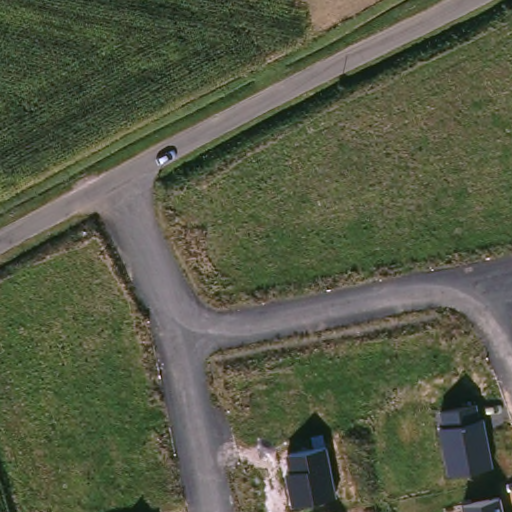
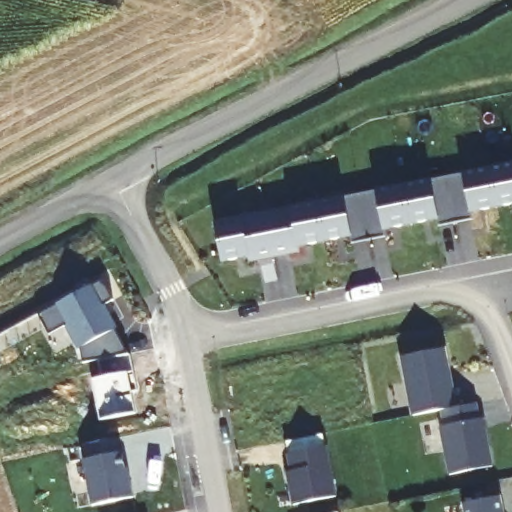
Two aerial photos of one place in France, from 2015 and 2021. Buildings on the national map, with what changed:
new [(512,207),(496,210),(488,171),(512,167),(512,207)]
new [(488,171),(496,210),(473,215),(474,222),(456,226),(447,179),(488,171)]
new [(447,179),(456,226),(440,229),(438,222),(412,227),(404,188),(447,179)]
new [(404,188),(412,227),(385,232),(387,240),(370,243),(361,196),(404,188)]
new [(361,196),(370,243),(353,246),(351,239),(325,244),(317,205),(361,196)]
new [(317,205),(325,244),(299,250),(300,254),(274,259),(266,215),(317,205)]
new [(266,215),(274,259),(250,264),(249,259),(222,265),(214,226),(266,215)]
new [(102,281),(112,299),(92,309),(101,326),(110,320),(126,353),(85,363),(80,342),(85,338),(75,320),(49,333),(39,315),(102,281)]
new [(442,408),(413,415),(400,356),(446,347),(456,406),(442,408)]
unchanged [(439,426),(445,425),(442,408),(480,401),(482,418),(485,418),(493,467),(448,476),(439,426)]
new [(86,461),(83,446),(117,440),(120,454),(123,454),(128,481),(130,480),(134,499),(92,507),(83,461),(86,461)]
unchanged [(287,470),(291,469),(287,453),(327,446),(337,499),(294,506),(287,470)]
unchanged [(461,503),(502,494),(505,512),(463,512),(461,503)]

